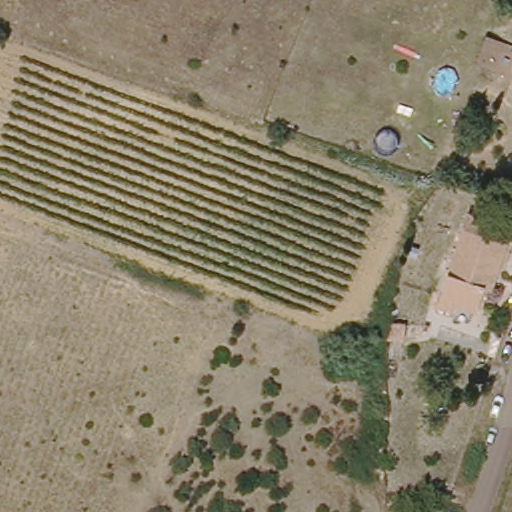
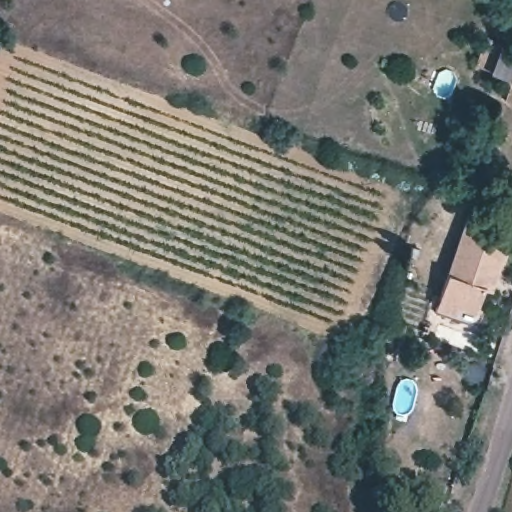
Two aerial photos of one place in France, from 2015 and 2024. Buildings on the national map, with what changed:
unchanged [(480,296),(472,320),(435,307),(464,221),(502,234),(509,237),(503,252),(487,298),(480,296)]

